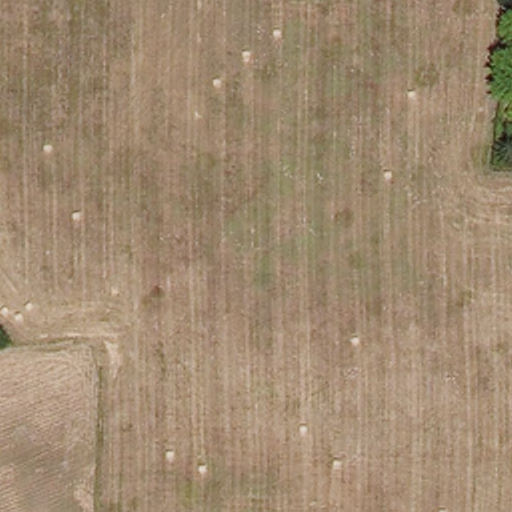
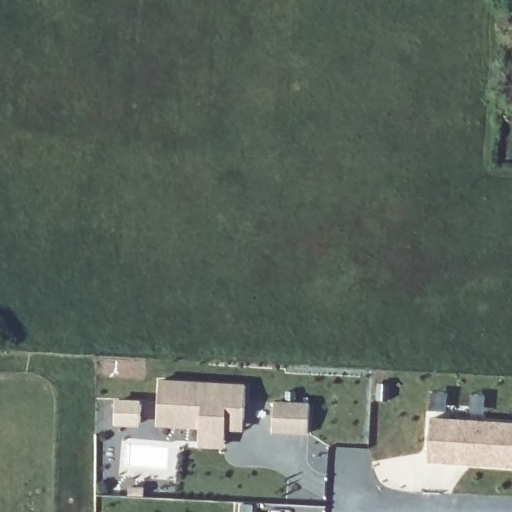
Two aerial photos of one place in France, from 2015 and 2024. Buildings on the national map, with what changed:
new [(158,426),(161,383),(247,389),(244,432),(227,431),(225,450),(198,448),(199,429),(158,426)]
new [(118,403),(143,405),(141,425),(116,423),(118,403)]
new [(276,405),(311,407),(309,436),(274,433),(276,405)]
new [(432,421),(512,426),(512,468),(429,462),(432,421)]

